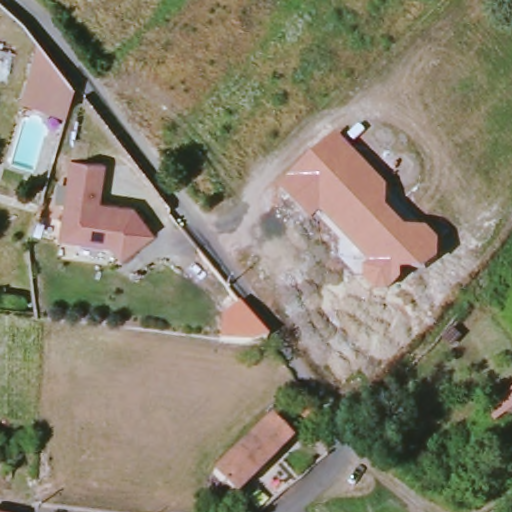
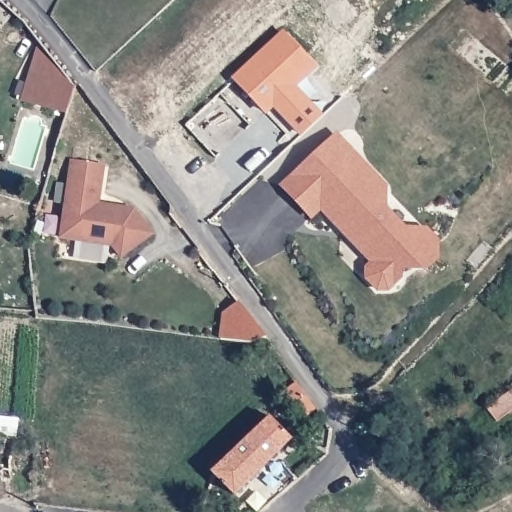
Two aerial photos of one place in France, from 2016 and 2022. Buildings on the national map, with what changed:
new [(300,136),(274,110),(267,116),(232,78),(283,30),(317,66),(297,87),(324,115),(300,136)]
unchanged [(65,111),(21,98),(37,45),(72,84),(65,111)]
unchanged [(439,242),(438,262),(423,274),(402,273),(400,282),(394,288),(387,294),(377,292),(365,280),(364,269),(368,264),(319,212),(310,220),(280,185),(337,134),(387,185),(385,208),(405,228),(426,229),(439,242)]
unchanged [(61,229),(62,228),(69,165),(101,166),(98,197),(94,197),(89,204),(98,210),(135,212),(153,238),(122,261),(113,249),(75,245),(59,244),(61,229)]
new [(252,341),(218,337),(222,312),(240,302),(266,336),(252,341)]
unchanged [(308,418),(292,391),(304,383),(321,408),(308,418)]
unchanged [(507,416),(494,422),(485,409),(512,390),(512,417),(507,416)]
unchanged [(215,466),(274,412),(293,436),(234,491),(215,466)]

